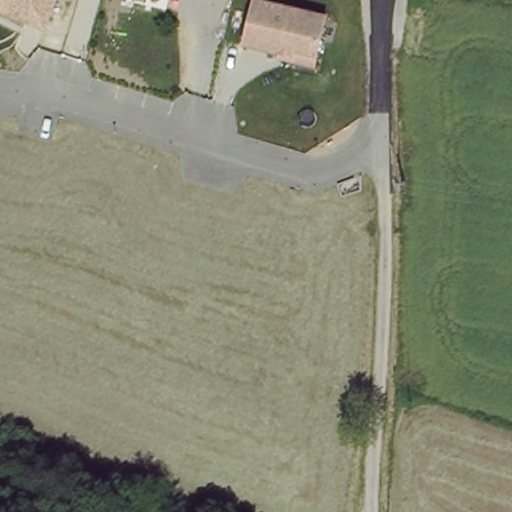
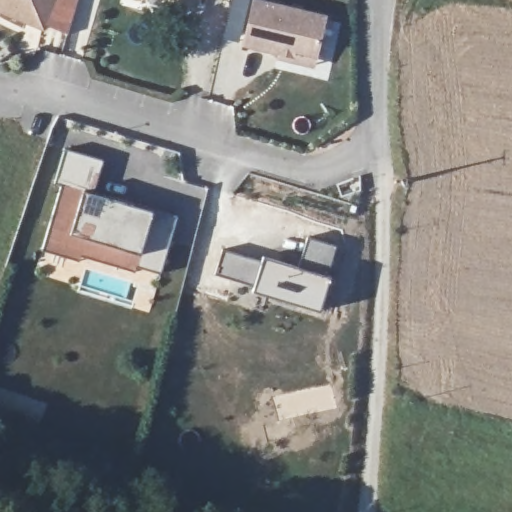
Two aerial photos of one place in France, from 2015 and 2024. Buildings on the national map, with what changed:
unchanged [(45,31),(0,13),(0,0),(58,0),(45,31)]
unchanged [(257,1),(328,19),(319,56),(297,51),(295,56),(247,45),(257,1)]
new [(104,156),(95,190),(135,202),(135,200),(178,212),(162,271),(137,264),(136,270),(82,254),(80,258),(43,247),(62,182),(55,180),(66,145),(104,156)]
new [(263,258),(264,254),(301,265),(309,234),(337,242),(329,273),(331,274),(321,309),(253,289),(255,284),(215,272),(223,247),(263,258)]

